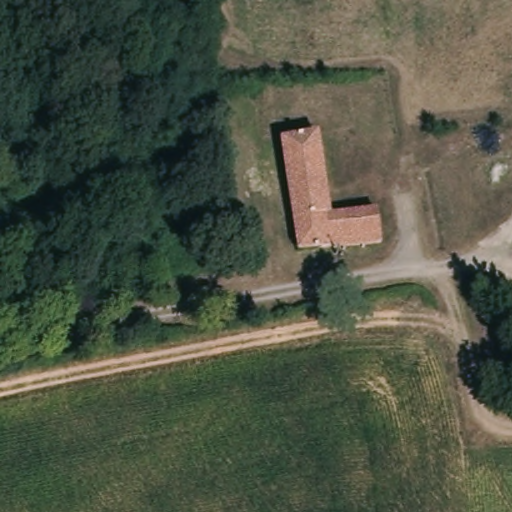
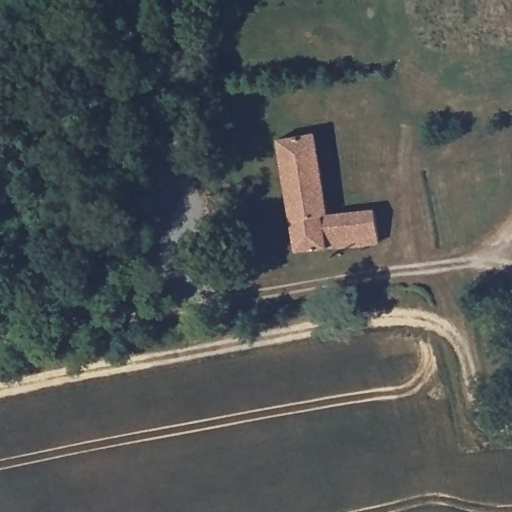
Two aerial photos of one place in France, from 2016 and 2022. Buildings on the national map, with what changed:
unchanged [(324,186),(328,213),(322,214),(326,247),(297,250),(286,181),(270,184),(268,167),(283,165),(280,137),(315,131),(324,186)]
unchanged [(375,210),(380,241),(327,247),(326,247),(322,214),(328,213),(375,210)]

